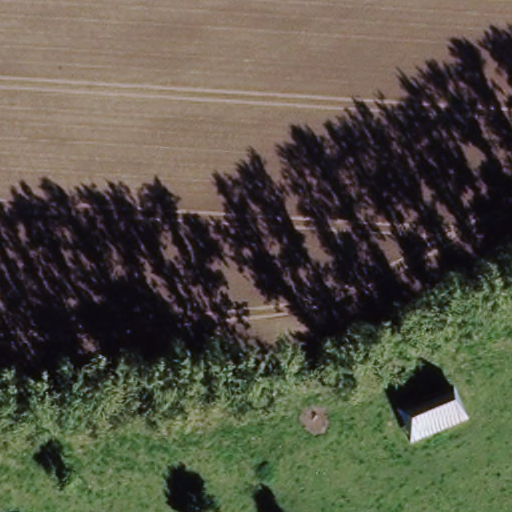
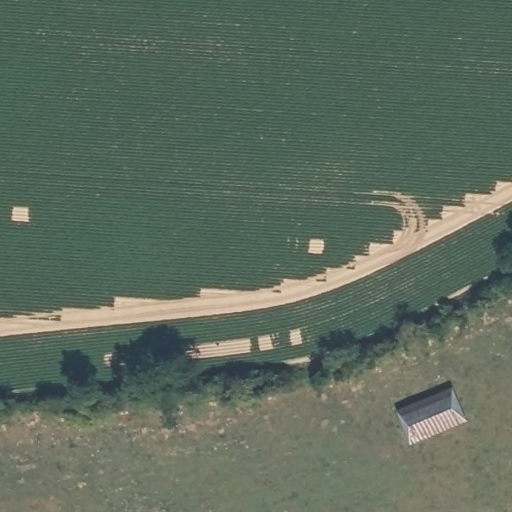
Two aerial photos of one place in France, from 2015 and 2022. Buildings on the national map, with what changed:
unchanged [(395,421),(458,395),(469,421),(407,446),(395,421)]

